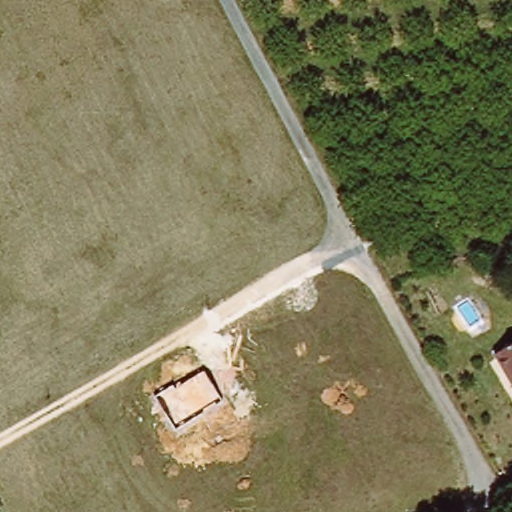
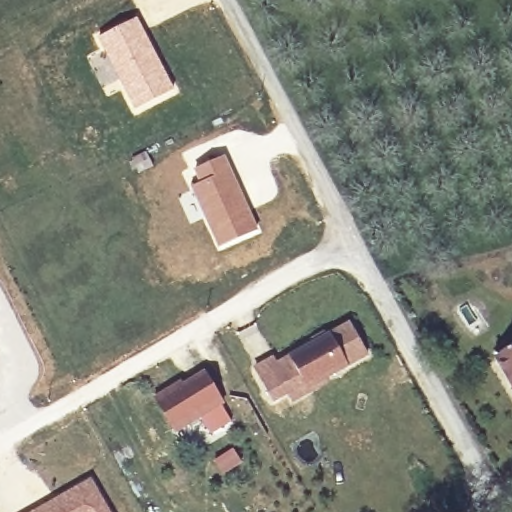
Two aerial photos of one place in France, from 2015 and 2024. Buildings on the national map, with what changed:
new [(137,15),(175,89),(134,110),(95,37),(137,15)]
new [(199,182),(193,167),(225,155),(258,229),(218,247),(190,186),(199,182)]
new [(349,319),(368,354),(310,391),(287,353),(349,319)]
unchanged [(492,353),(512,342),(512,391),(492,353)]
new [(272,354),(276,360),(287,353),(310,391),(291,402),(287,395),(273,403),(252,365),(272,354)]
unchanged [(203,370),(222,401),(172,430),(155,400),(203,370)]
new [(112,512),(27,512),(90,475),(112,512)]

